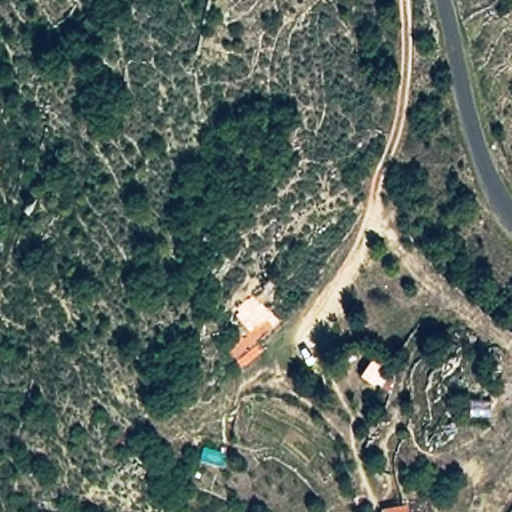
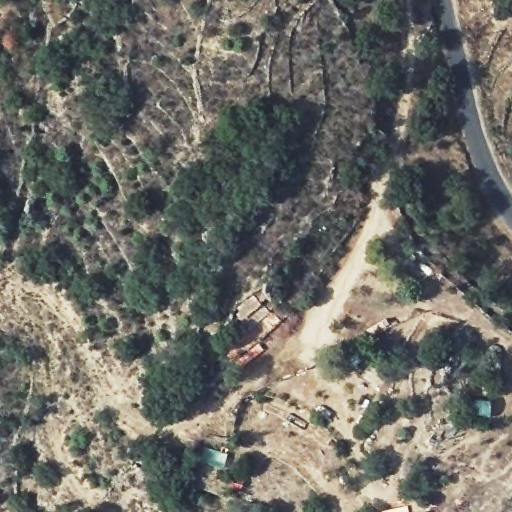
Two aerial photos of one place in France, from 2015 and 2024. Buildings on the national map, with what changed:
unchanged [(402,512),(376,512),(401,506),(402,512)]

